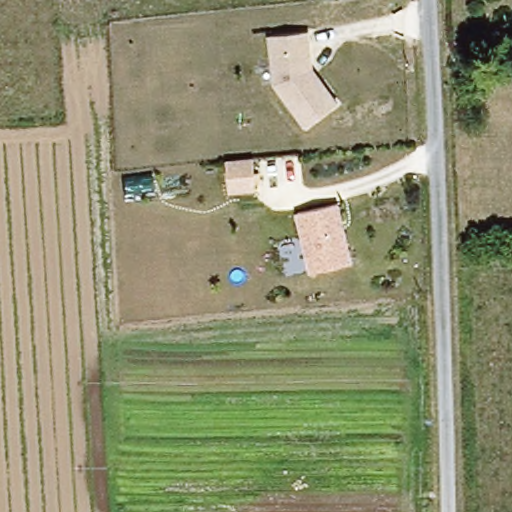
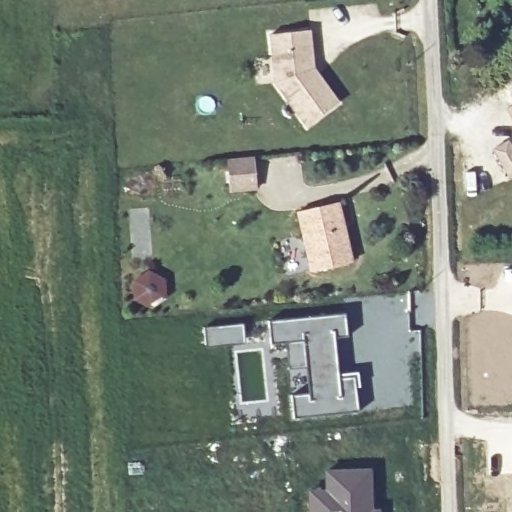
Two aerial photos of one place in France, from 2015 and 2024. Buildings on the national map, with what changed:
unchanged [(310,27),(316,69),(340,100),(306,125),(273,81),(268,33),(310,27)]
new [(512,108),(512,117),(508,110),(512,108)]
new [(512,179),(511,180),(496,152),(512,144),(512,179)]
unchanged [(256,156),(259,191),(227,193),(224,156),(256,156)]
unchanged [(338,200),(354,263),(308,273),(295,211),(338,200)]
new [(345,312),(348,337),(335,338),(339,372),(357,370),(359,412),(292,420),(285,343),(270,345),(268,320),(345,312)]
new [(243,322),(245,342),(206,346),(203,326),(243,322)]
new [(323,468),(372,466),(373,508),(380,507),(381,512),(307,512),(306,488),(323,488),(323,468)]

